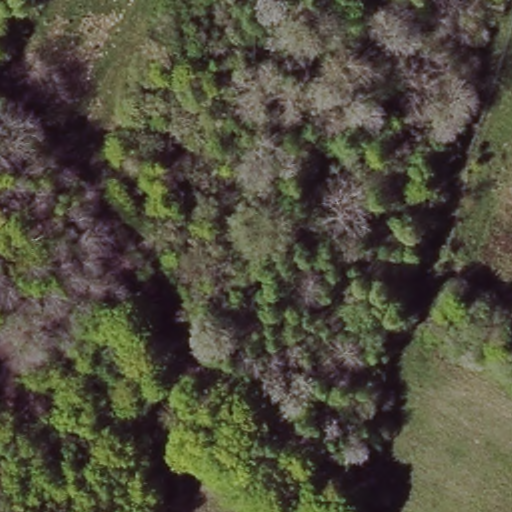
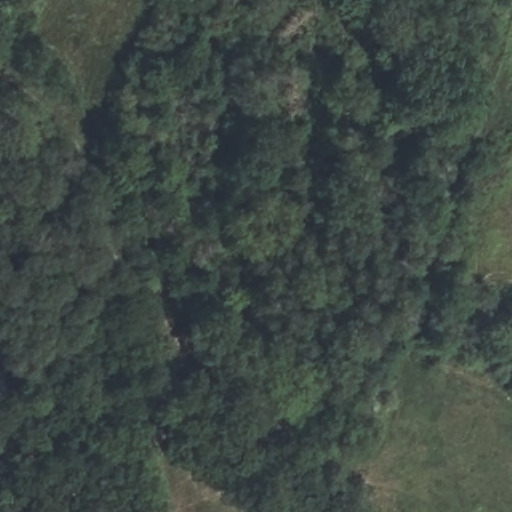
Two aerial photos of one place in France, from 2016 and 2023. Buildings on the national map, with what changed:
unchanged [(140,459),(147,433),(173,445),(169,468),(140,459)]

